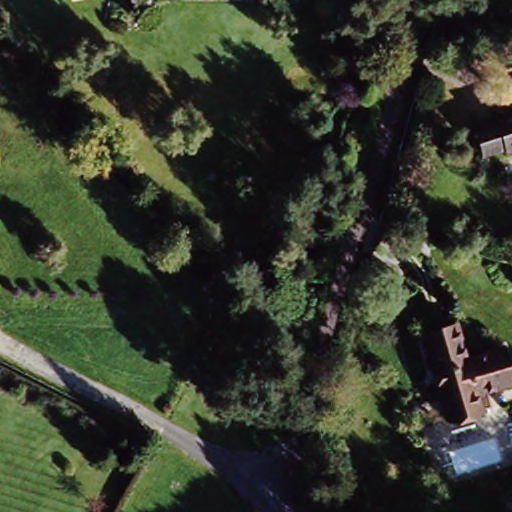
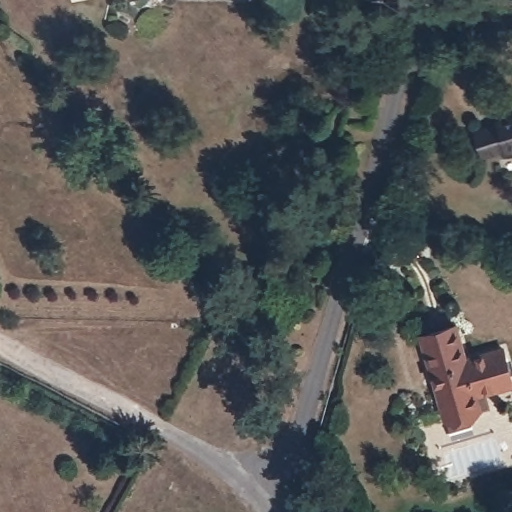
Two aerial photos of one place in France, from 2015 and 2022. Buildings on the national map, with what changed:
unchanged [(512,156),(502,159),(502,153),(483,159),(474,132),(497,126),(496,122),(512,118),(512,156)]
unchanged [(454,321),(463,354),(498,345),(504,372),(470,383),(474,402),(436,415),(419,332),(454,321)]

